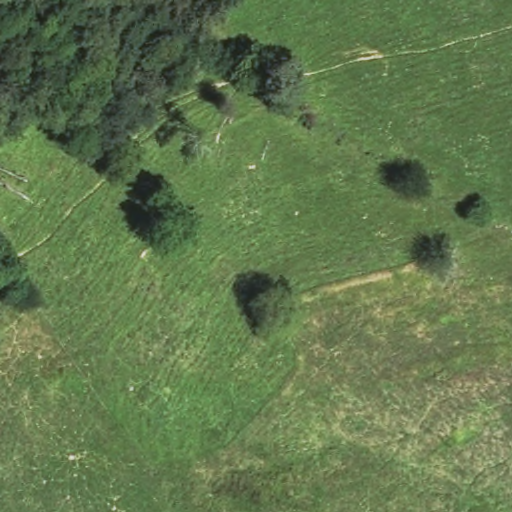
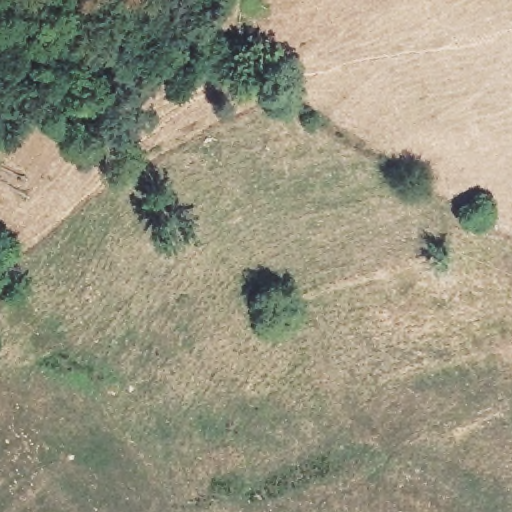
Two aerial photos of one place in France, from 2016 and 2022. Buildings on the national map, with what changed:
[]

